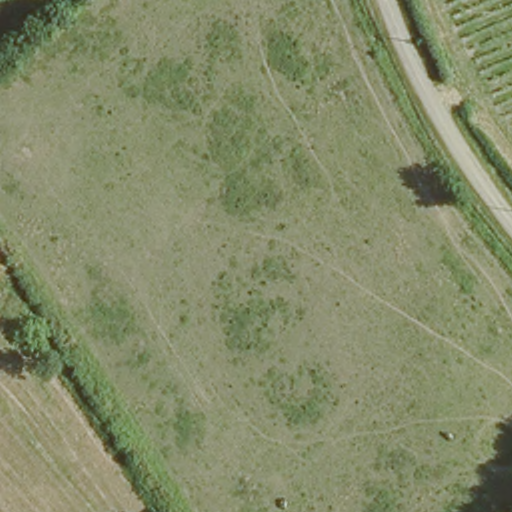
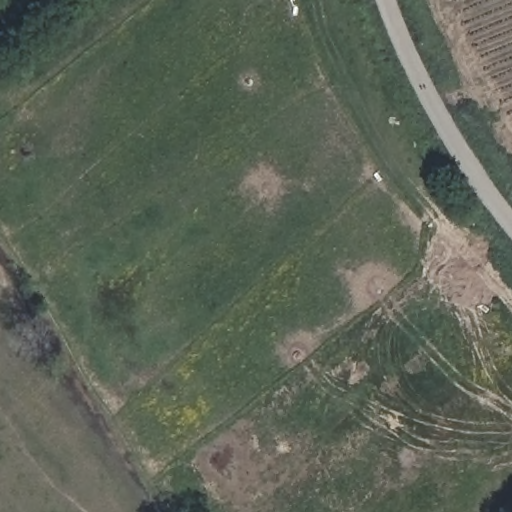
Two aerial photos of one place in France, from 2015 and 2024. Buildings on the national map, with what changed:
[]

